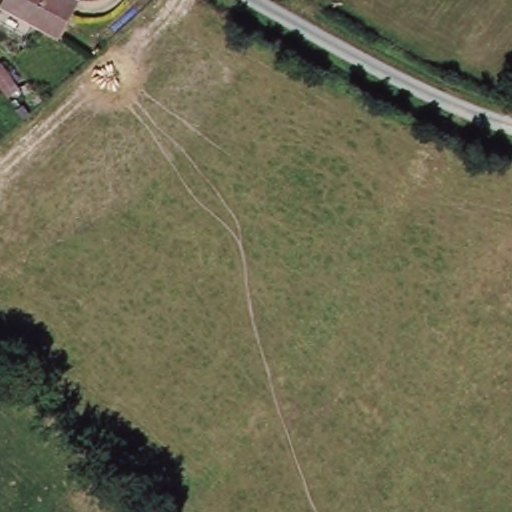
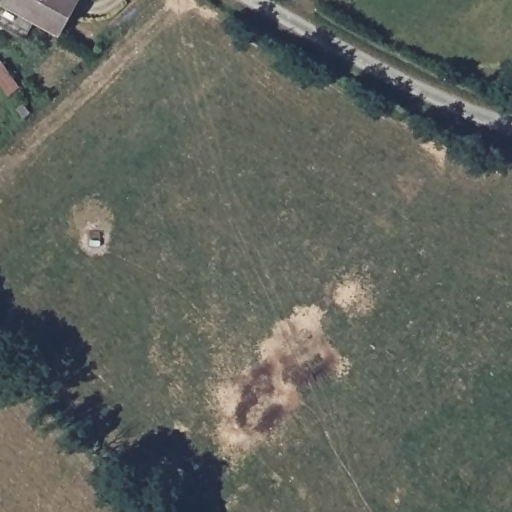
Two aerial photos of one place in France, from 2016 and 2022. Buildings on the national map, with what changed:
unchanged [(2,5),(5,0),(81,0),(63,36),(2,5)]

